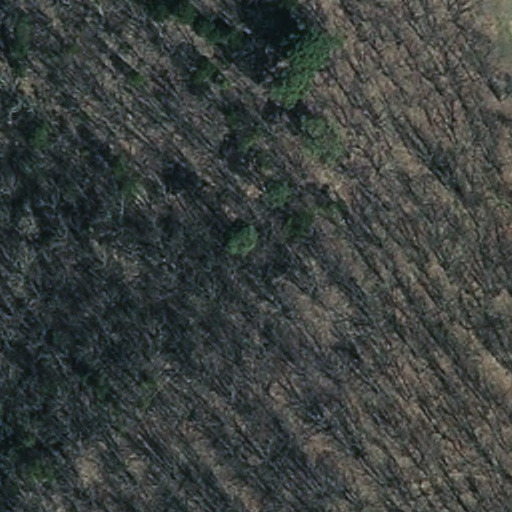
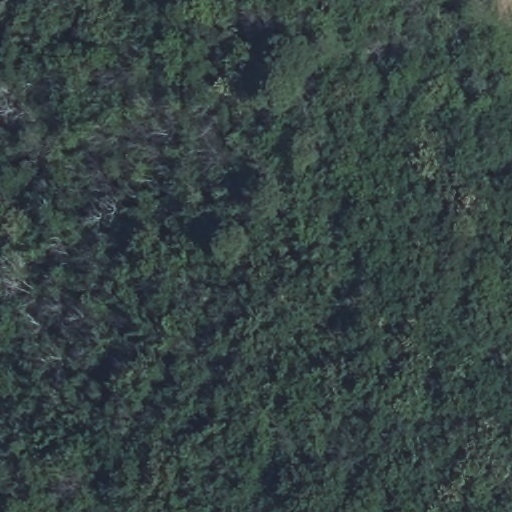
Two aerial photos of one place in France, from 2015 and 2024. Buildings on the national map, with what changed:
[]

